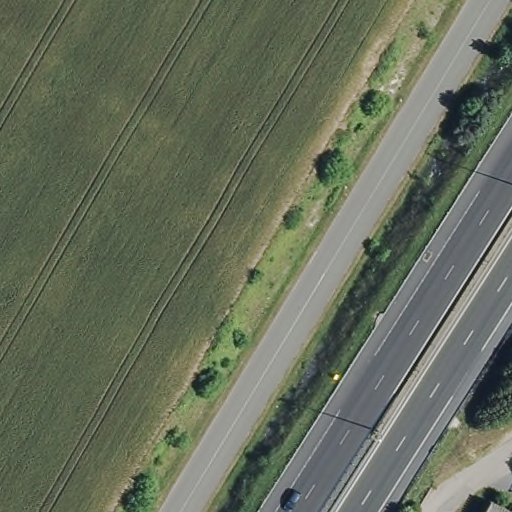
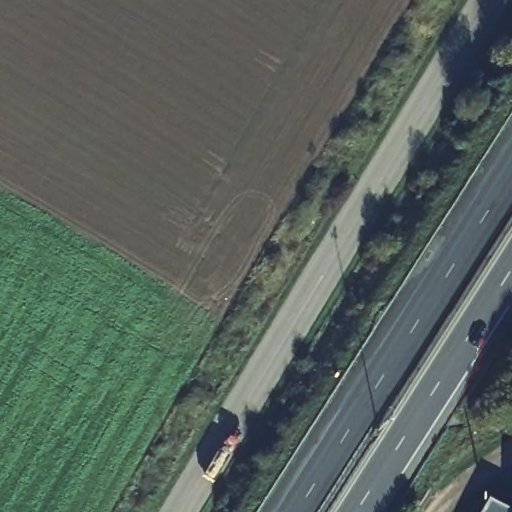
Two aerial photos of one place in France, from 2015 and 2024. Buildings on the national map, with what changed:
unchanged [(490,505),(504,512),(482,512),(487,503),(490,505)]

